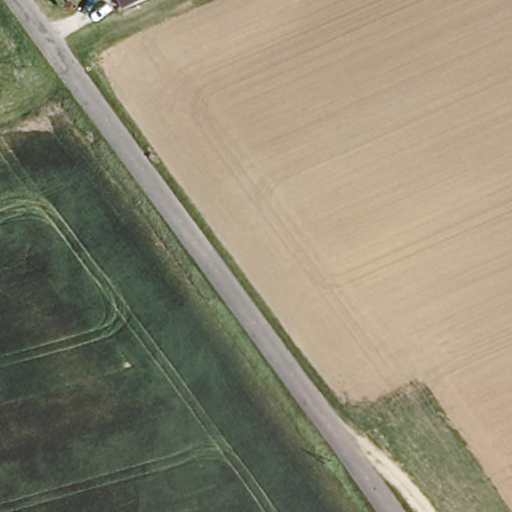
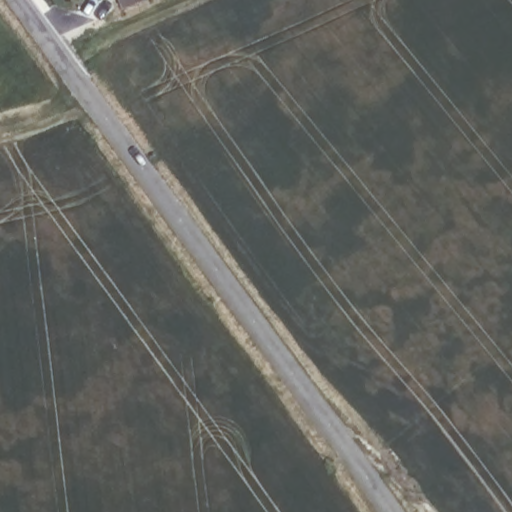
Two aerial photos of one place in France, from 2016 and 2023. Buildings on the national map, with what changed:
unchanged [(122,11),(117,0),(149,0),(122,11)]

